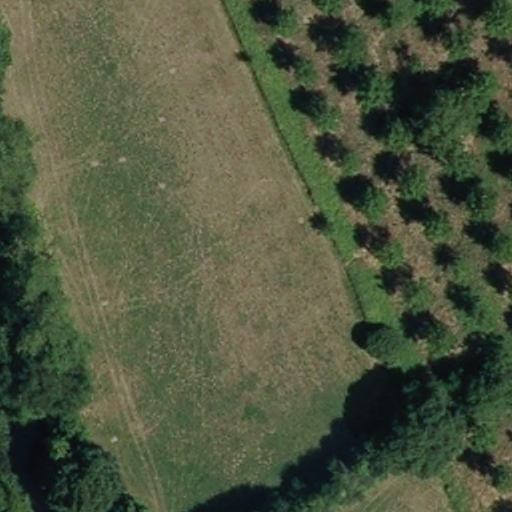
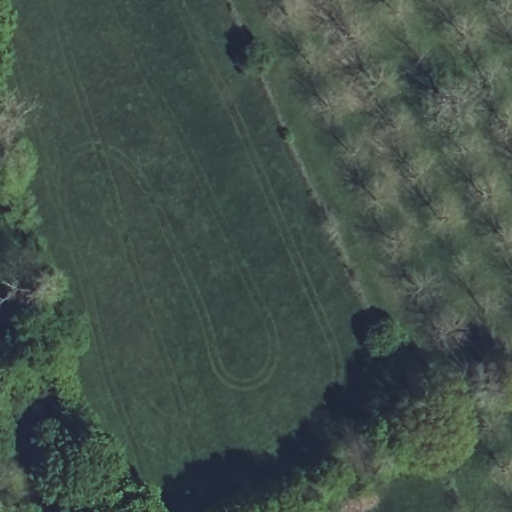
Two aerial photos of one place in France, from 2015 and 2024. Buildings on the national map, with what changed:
[]

